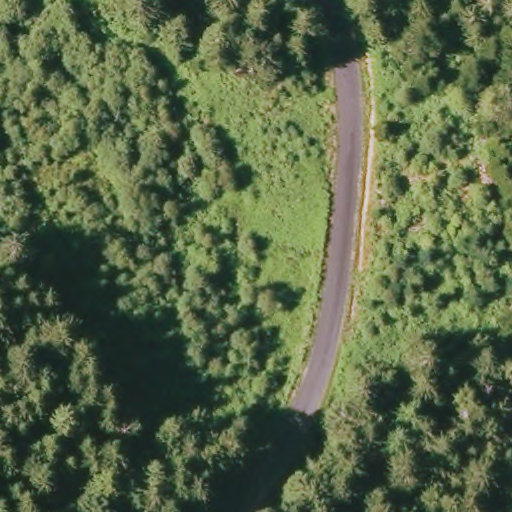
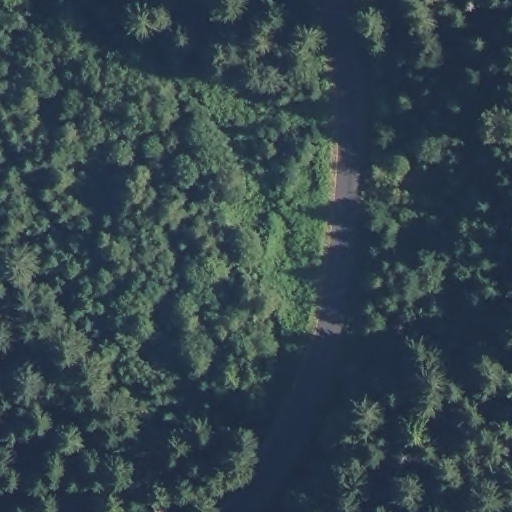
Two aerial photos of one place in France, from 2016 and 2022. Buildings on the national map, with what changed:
[]

